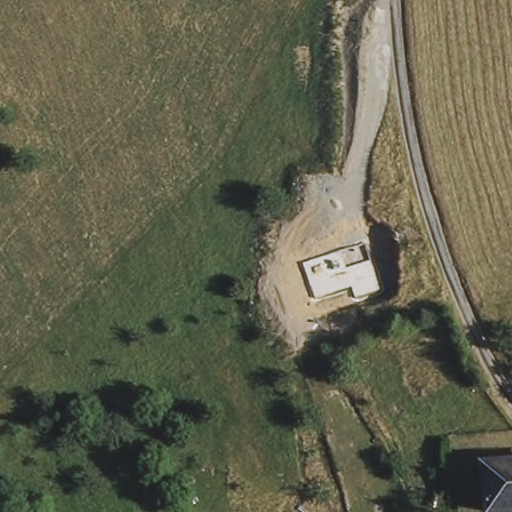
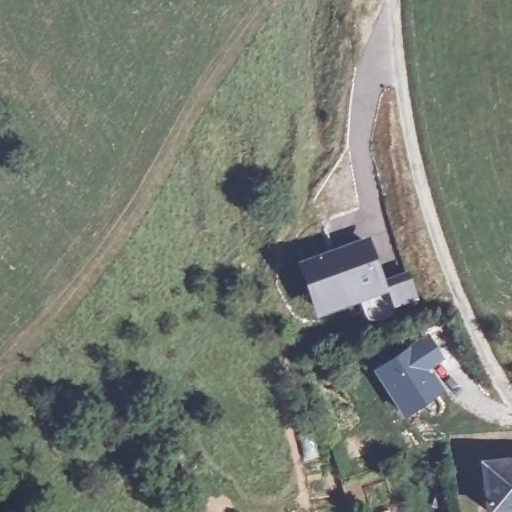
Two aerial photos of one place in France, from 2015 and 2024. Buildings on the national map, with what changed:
new [(359,242),(375,290),(349,299),(344,287),(310,300),(298,264),(359,242)]
new [(428,330),(447,359),(434,368),(446,386),(401,414),(369,368),(428,330)]
unchanged [(512,512),(492,512),(486,461),(512,459),(512,512)]

